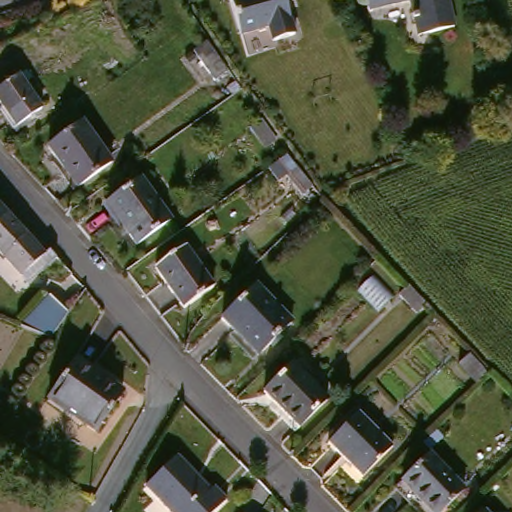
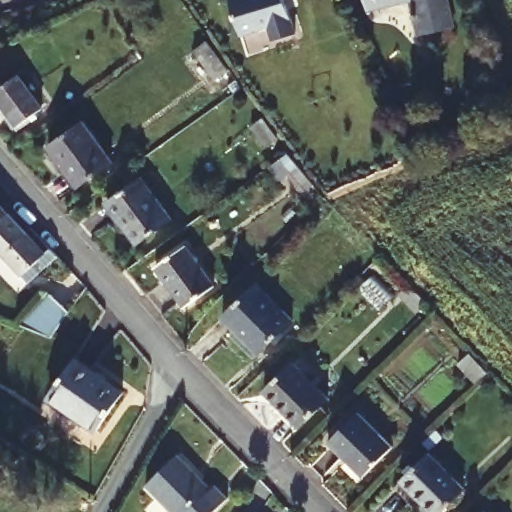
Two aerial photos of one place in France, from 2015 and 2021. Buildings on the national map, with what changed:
unchanged [(298,34),(274,39),(271,25),(243,31),(235,0),(290,0),(298,34)]
unchanged [(371,9),(368,0),(397,0),(371,9)]
unchanged [(456,22),(416,33),(409,5),(404,5),(404,0),(451,0),(456,22)]
unchanged [(182,61),(198,49),(206,59),(226,83),(209,96),(189,71),(182,61)]
unchanged [(0,94),(23,78),(46,109),(19,129),(0,102),(0,94)]
unchanged [(76,187),(54,148),(91,126),(111,164),(76,187)]
unchanged [(256,145),(268,135),(288,159),(274,169),(256,145)]
unchanged [(321,201),(309,211),(293,191),(305,181),(321,201)]
unchanged [(171,224),(135,245),(109,205),(143,184),(171,224)]
unchanged [(51,256),(29,276),(0,245),(0,232),(0,199),(2,202),(17,218),(34,237),(51,256)]
unchanged [(158,264),(191,245),(218,288),(184,309),(158,264)]
unchanged [(223,315),(257,284),(294,323),(257,356),(223,315)]
unchanged [(51,341),(19,327),(49,293),(68,310),(51,341)]
unchanged [(55,393),(86,359),(125,394),(94,428),(55,393)]
unchanged [(329,398),(299,426),(268,393),(297,365),(329,398)]
unchanged [(362,476),(331,443),(363,414),(394,447),(362,476)]
unchanged [(442,512),(429,512),(401,481),(429,454),(464,492),(442,512)]
unchanged [(165,512),(142,488),(174,458),(191,476),(190,477),(195,482),(196,481),(206,492),(211,488),(223,501),(212,512),(165,512)]

